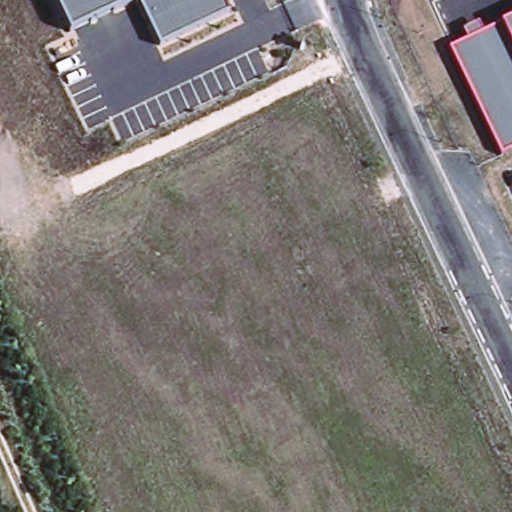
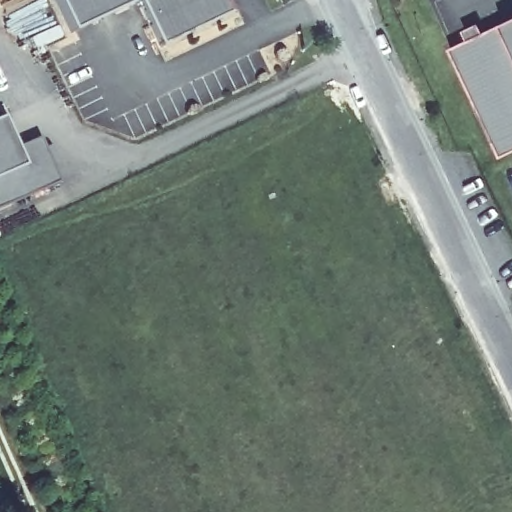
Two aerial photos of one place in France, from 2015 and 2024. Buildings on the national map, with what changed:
unchanged [(57,0),(134,0),(70,30),(57,0)]
unchanged [(160,48),(139,0),(224,0),(231,14),(160,48)]
unchanged [(502,157),(450,48),(512,19),(512,153),(502,157)]
new [(14,147),(38,137),(57,182),(0,207),(0,116),(14,147)]

